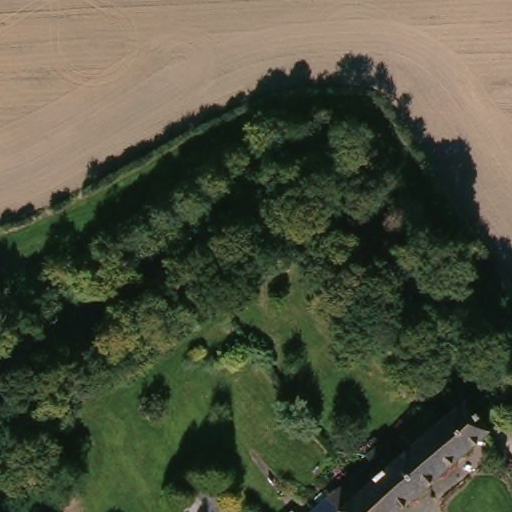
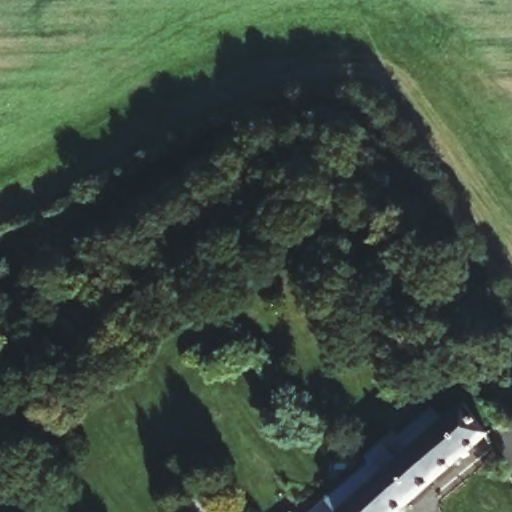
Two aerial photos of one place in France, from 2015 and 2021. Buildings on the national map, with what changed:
unchanged [(334,507),(330,503),(342,492),(376,463),(388,474),(414,452),(418,449),(409,436),(440,409),(451,422),(469,407),(496,441),(412,512),(327,512),(334,507)]
unchanged [(235,512),(195,512),(220,493),(235,512)]

